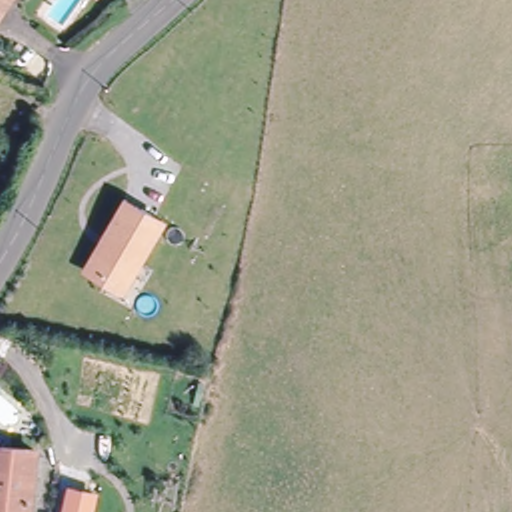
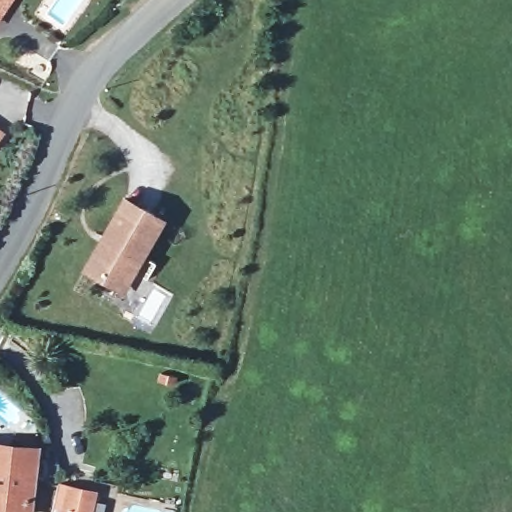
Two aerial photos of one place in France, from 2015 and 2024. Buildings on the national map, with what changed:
unchanged [(0,18),(0,0),(13,0),(0,18)]
unchanged [(7,133),(0,143),(0,128),(7,133)]
unchanged [(125,199),(162,219),(126,287),(87,266),(125,199)]
unchanged [(37,449),(30,512),(0,512),(0,445),(37,449)]
unchanged [(99,489),(94,512),(62,512),(67,484),(99,489)]

